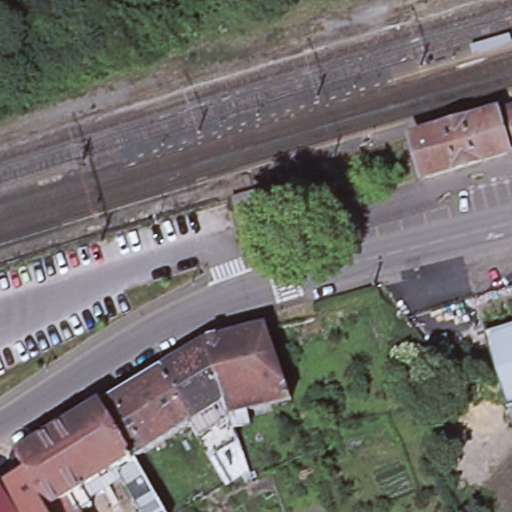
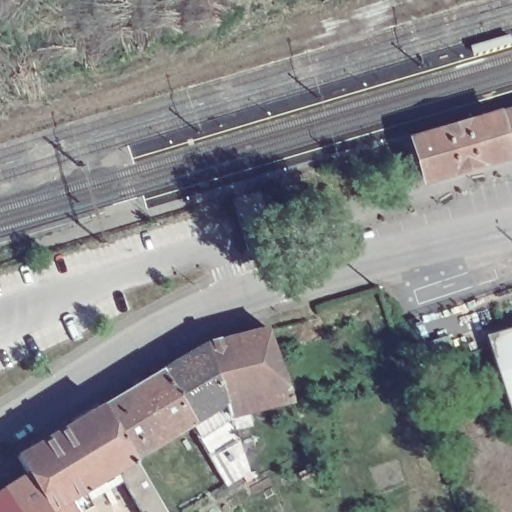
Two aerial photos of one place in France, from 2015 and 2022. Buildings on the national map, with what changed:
unchanged [(421,177),(410,138),(512,109),(512,151),(421,177)]
unchanged [(232,197),(258,190),(272,242),(246,249),(232,197)]
unchanged [(229,419),(224,405),(203,343),(266,327),(289,398),(229,419)]
unchanged [(504,411),(482,336),(512,327),(512,409),(504,411)]
unchanged [(203,343),(224,405),(188,425),(156,369),(203,342),(203,343)]
unchanged [(79,489),(46,509),(43,503),(16,455),(98,404),(110,398),(156,369),(188,425),(141,452),(131,458),(162,512),(138,512),(113,469),(79,489)]
unchanged [(229,419),(246,469),(248,475),(223,488),(188,425),(224,405),(229,419)]
unchanged [(48,512),(0,512),(0,489),(2,487),(26,473),(46,509),(48,512)]
unchanged [(76,512),(48,512),(46,509),(79,489),(89,505),(76,512)]

